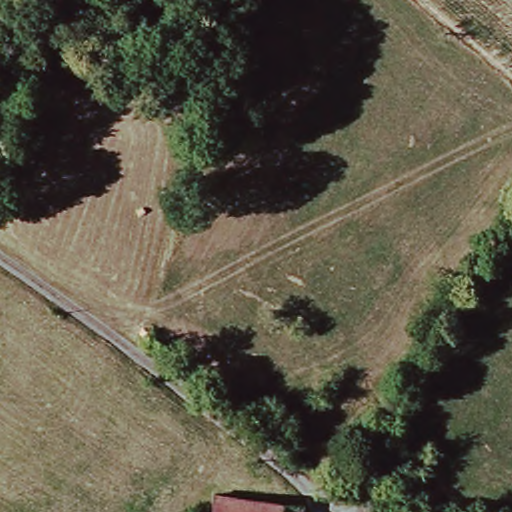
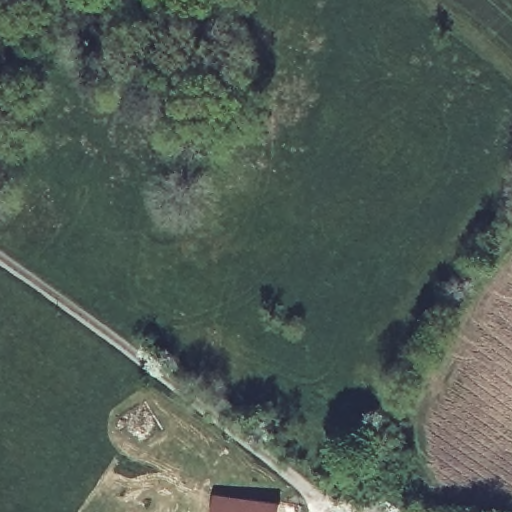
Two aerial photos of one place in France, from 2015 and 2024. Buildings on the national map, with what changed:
unchanged [(302,512),(215,512),(216,497),(303,509),(302,512)]

